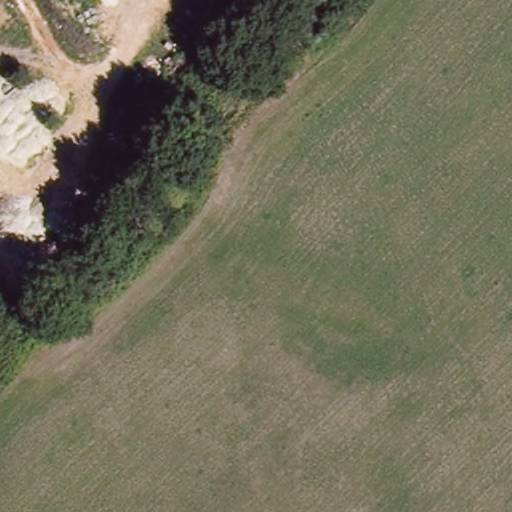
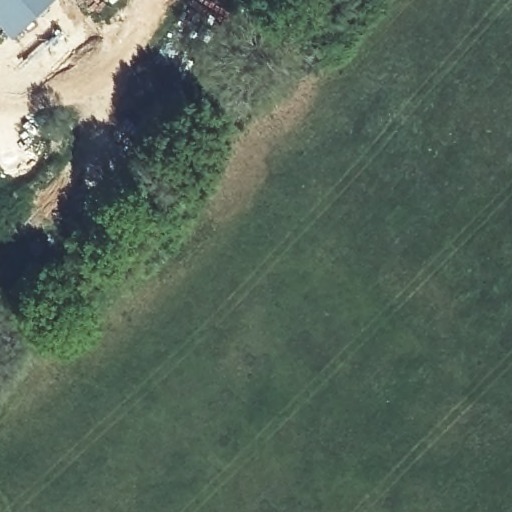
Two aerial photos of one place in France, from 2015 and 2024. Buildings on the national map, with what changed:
new [(16,42),(0,24),(0,0),(60,0),(16,42)]

